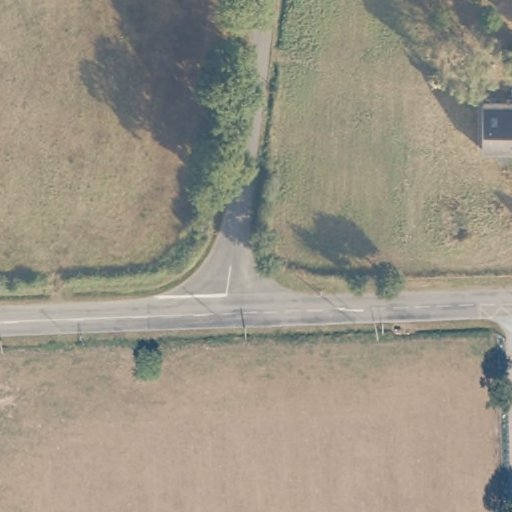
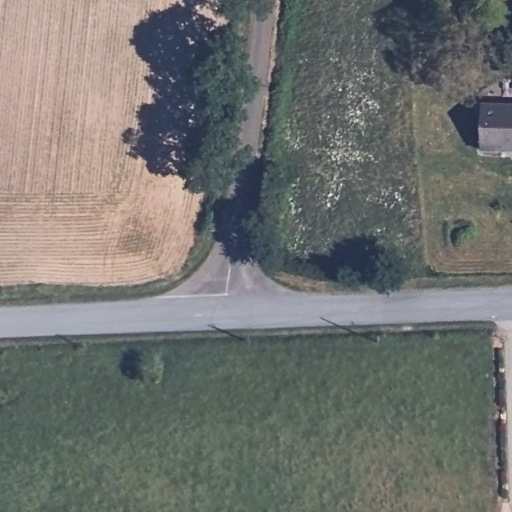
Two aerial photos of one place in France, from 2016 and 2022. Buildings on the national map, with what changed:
unchanged [(512,97),(512,139),(503,139),(502,145),(480,146),(481,96),(512,97)]

